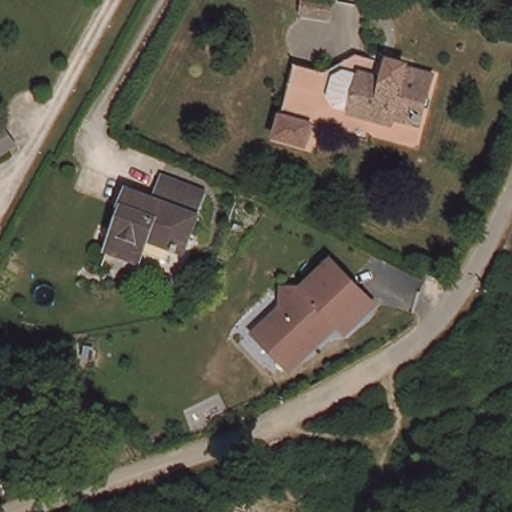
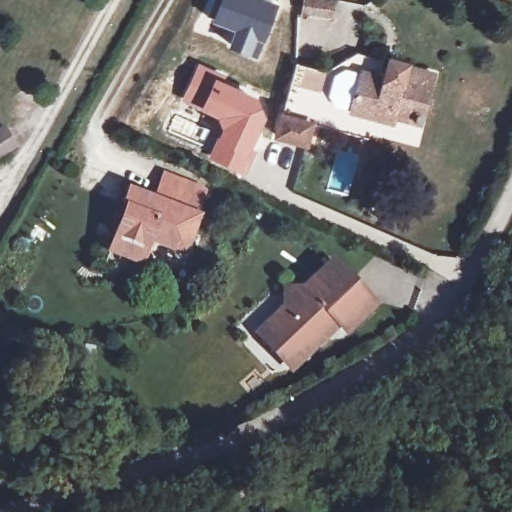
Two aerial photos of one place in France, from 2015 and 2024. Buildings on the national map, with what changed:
new [(278,0),(279,1),(256,58),(226,46),(232,30),(210,22),(218,0),(278,0)]
new [(334,0),(331,18),(301,15),(304,0),(334,0)]
unchanged [(416,63),(414,66),(442,74),(429,119),(399,111),(397,120),(379,115),(372,136),(316,119),(309,139),(279,130),(303,59),(332,68),(366,51),(398,61),(399,58),(416,63)]
new [(268,116),(258,128),(252,144),(259,147),(246,177),(208,159),(221,126),(218,118),(201,108),(182,99),(198,63),(217,73),(260,96),(268,116)]
unchanged [(14,148),(0,156),(0,134),(4,131),(14,148)]
unchanged [(144,256),(113,245),(129,205),(126,204),(132,188),(159,197),(164,182),(168,174),(208,188),(207,191),(199,211),(201,211),(188,245),(153,233),(144,256)]
unchanged [(275,358),(256,340),(283,313),(283,294),(304,295),(332,266),(374,304),(345,333),(335,323),(316,342),(319,344),(304,357),(290,372),(275,358)]
unchanged [(6,420),(0,416),(0,392),(18,403),(6,420)]

